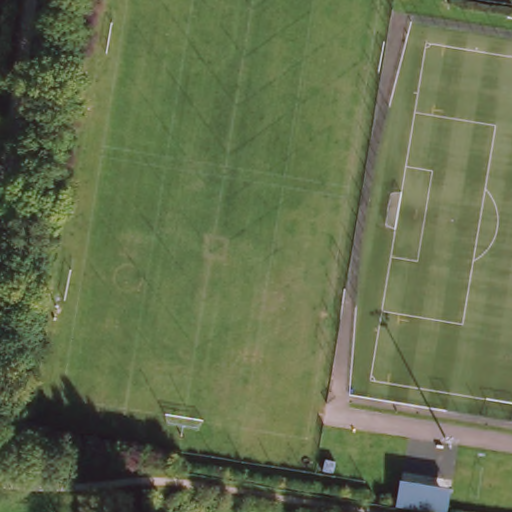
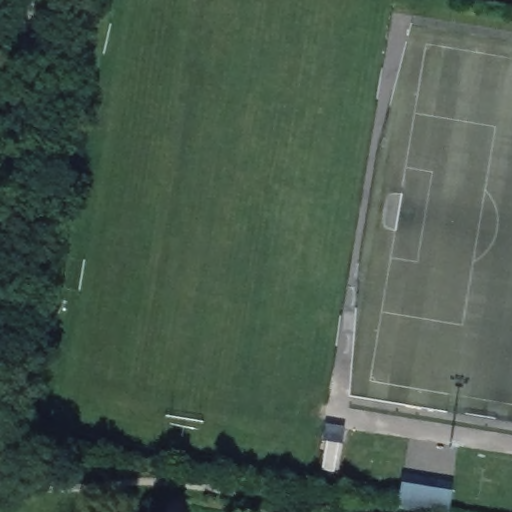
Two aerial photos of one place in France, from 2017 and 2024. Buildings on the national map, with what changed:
unchanged [(473,487),(472,507),(452,508),(452,512),(401,512),(403,485),(449,488),(473,487)]

